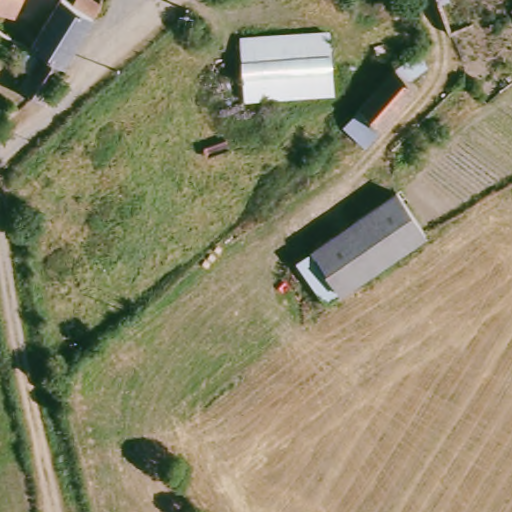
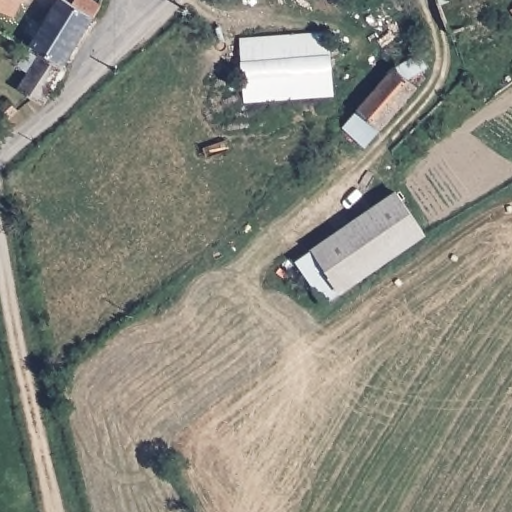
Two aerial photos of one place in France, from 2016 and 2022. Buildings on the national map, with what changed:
unchanged [(20,20),(0,10),(0,0),(30,0),(20,20)]
unchanged [(45,109),(30,100),(18,94),(28,74),(20,69),(32,49),(10,35),(15,26),(41,39),(67,4),(78,10),(86,0),(88,0),(105,12),(105,13),(68,69),(72,71),(45,109)]
unchanged [(248,45),(332,35),(336,92),(254,100),(248,45)]
unchanged [(357,121),(400,64),(424,51),(430,62),(412,75),(426,87),(379,150),(378,151),(348,130),(358,121),(357,121)]
unchanged [(0,96),(2,94),(11,103),(0,114),(0,96)]
unchanged [(435,231),(330,307),(300,267),(404,190),(435,231)]

